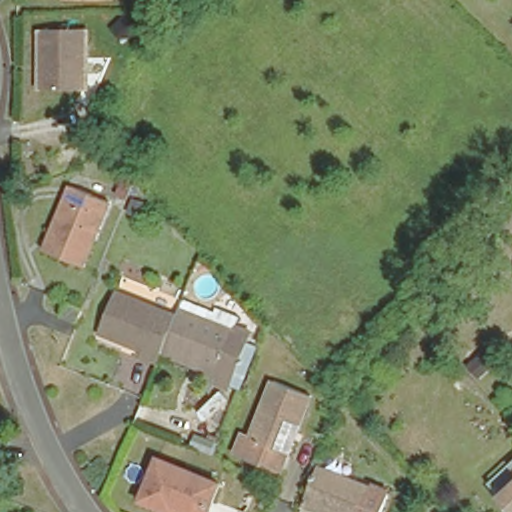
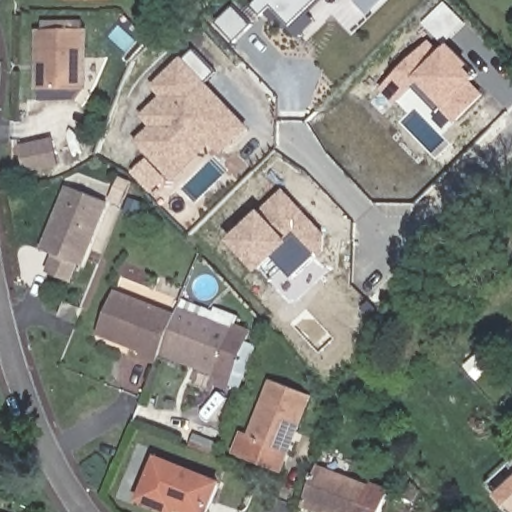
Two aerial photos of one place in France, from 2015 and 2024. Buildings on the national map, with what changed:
new [(310,16),(317,23),(299,41),(258,1),(259,0),(325,0),(310,16)]
new [(335,3),(332,0),(339,0),(335,3)]
new [(446,2),(468,23),(447,45),(425,23),(446,2)]
new [(232,7),(251,25),(235,43),(215,24),(232,7)]
unchanged [(84,25),(83,86),(40,86),(42,25),(84,25)]
new [(432,41),(445,51),(452,44),(474,66),(481,74),(478,77),(480,79),(477,81),(488,95),(460,123),(447,110),(446,109),(442,113),(417,88),(400,106),(384,90),(432,41)]
new [(153,128),(143,117),(162,97),(153,87),(182,57),(185,59),(195,50),(218,73),(209,83),(254,129),(226,157),(215,146),(179,182),(136,143),(153,128)]
new [(26,175),(20,145),(55,137),(61,167),(26,175)]
new [(151,159),(171,179),(156,194),(136,174),(151,159)]
unchanged [(60,205),(70,183),(107,199),(81,256),(52,244),(45,241),(60,205)]
new [(263,211),(265,212),(286,189),(328,234),(330,253),(324,260),(320,256),(297,279),(280,257),(263,274),(233,242),(263,211)]
unchanged [(155,354),(150,363),(134,355),(137,346),(96,328),(115,288),(173,314),(157,350),(155,354)]
unchanged [(53,319),(35,310),(40,298),(59,305),(53,319)]
unchanged [(174,311),(228,335),(232,328),(248,335),(221,390),(206,384),(209,377),(187,368),(190,363),(157,350),(173,314),(174,311)]
unchanged [(261,461),(231,448),(240,429),(246,432),(271,377),(310,394),(295,430),(277,468),(261,461)]
unchanged [(201,512),(172,512),(136,494),(157,453),(216,480),(201,512)]
unchanged [(483,482),(512,456),(512,512),(497,496),(483,482)]
unchanged [(380,512),(337,512),(301,497),(316,462),(389,493),(380,512)]

